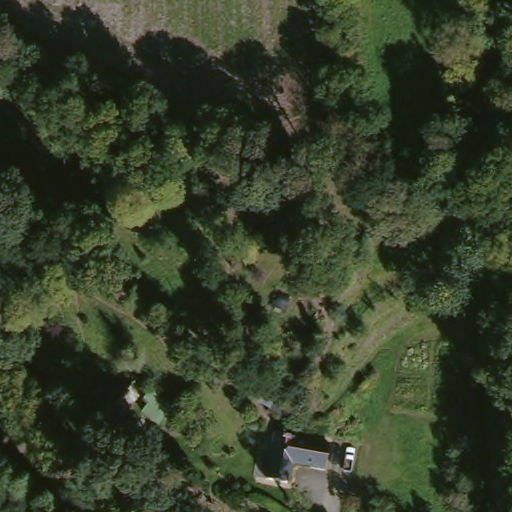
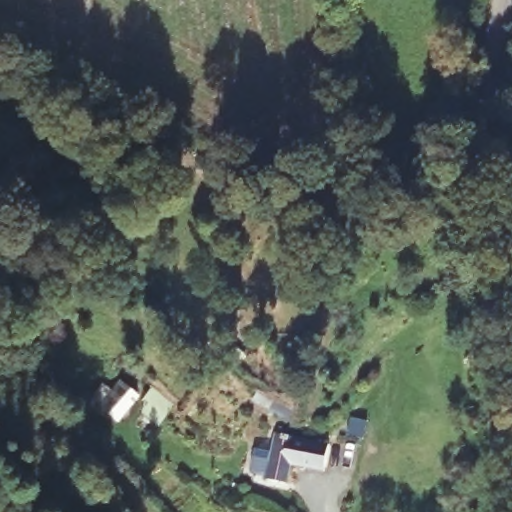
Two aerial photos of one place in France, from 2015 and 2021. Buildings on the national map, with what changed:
unchanged [(77,430),(60,415),(78,392),(96,407),(77,430)]
unchanged [(117,431),(102,416),(122,397),(137,413),(117,431)]
unchanged [(287,470),(285,492),(260,483),(268,440),(298,445),(315,447),(325,450),(321,476),(312,475),(296,472),(287,470)]

